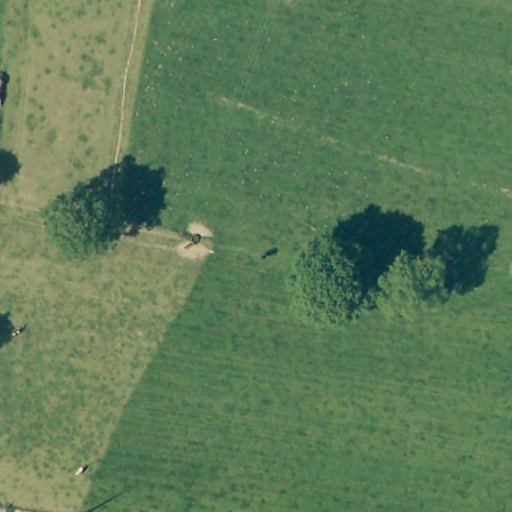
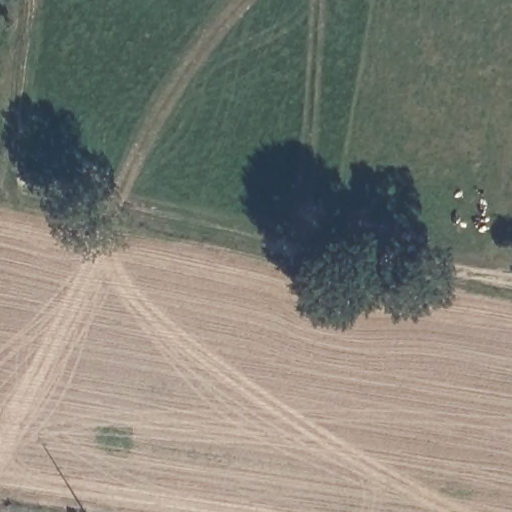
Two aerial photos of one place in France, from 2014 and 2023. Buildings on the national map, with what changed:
[]

